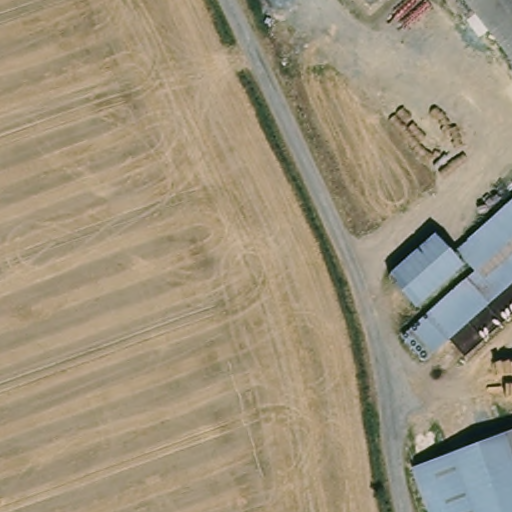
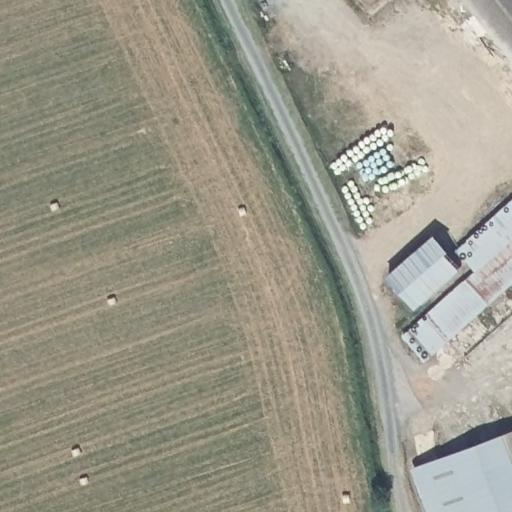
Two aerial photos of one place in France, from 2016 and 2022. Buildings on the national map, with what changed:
unchanged [(512,43),(478,0),(512,0),(512,43)]
unchanged [(404,336),(426,312),(416,307),(387,273),(436,231),(456,250),(512,200),(512,284),(426,360),(404,336)]
unchanged [(512,444),(512,461),(506,447),(512,444)]
unchanged [(506,447),(512,461),(512,512),(435,512),(421,480),(506,447)]

